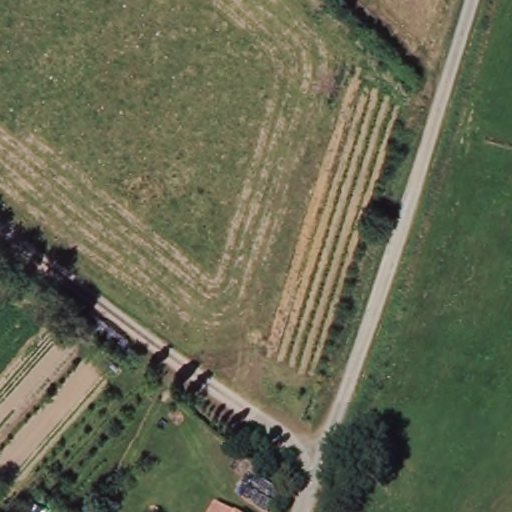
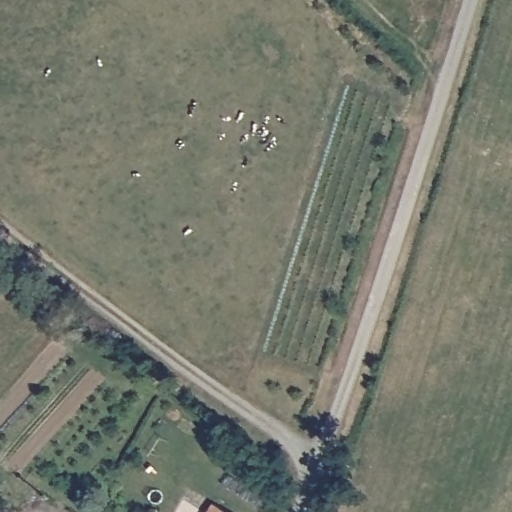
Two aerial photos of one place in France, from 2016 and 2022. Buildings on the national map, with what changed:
unchanged [(212,512),(213,510),(215,507),(222,512),(212,512)]

